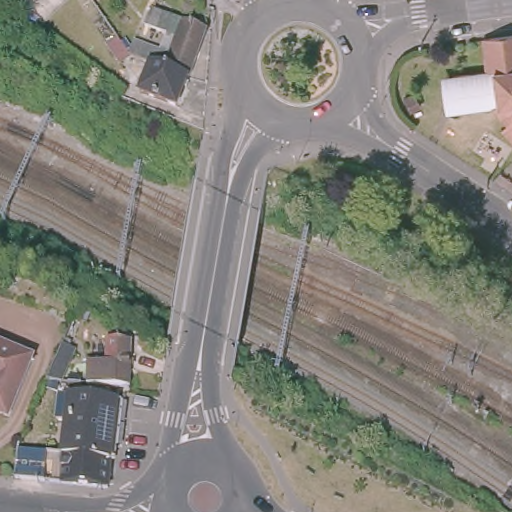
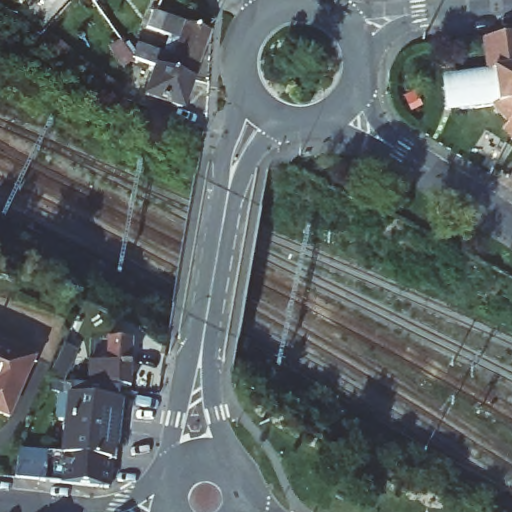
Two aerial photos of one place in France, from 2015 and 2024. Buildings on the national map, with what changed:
unchanged [(92,0),(94,0),(93,1),(92,0)]
unchanged [(137,56),(142,41),(162,49),(168,33),(150,26),(156,11),(159,11),(206,26),(209,29),(193,75),(158,63),(137,56)]
unchanged [(499,134),(507,126),(490,110),(454,114),(443,116),(441,104),(439,91),(437,80),(448,78),(499,71),(494,39),(499,38),(512,36),(512,146),(499,134)]
unchanged [(128,64),(115,47),(125,39),(137,56),(128,64)]
unchanged [(193,75),(182,106),(147,93),(158,63),(193,75)]
unchanged [(59,387),(44,385),(59,351),(66,335),(73,338),(66,353),(72,356),(59,387)]
unchanged [(0,408),(0,339),(38,355),(12,413),(0,408)]
unchanged [(90,367),(108,367),(106,344),(131,344),(133,385),(108,385),(108,387),(90,385),(90,367)]
unchanged [(103,405),(113,406),(103,466),(65,460),(73,417),(66,416),(69,400),(73,400),(73,393),(80,393),(103,397),(103,405)]

